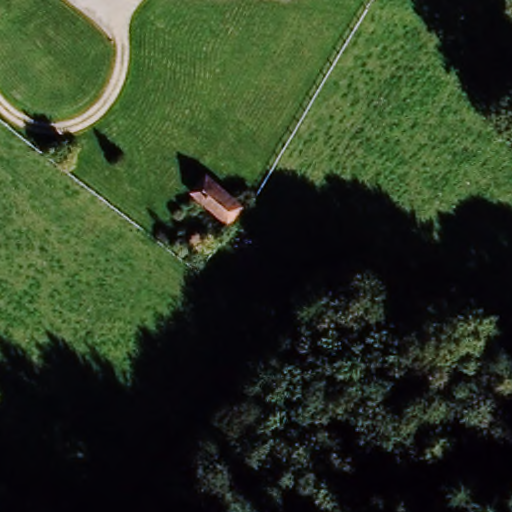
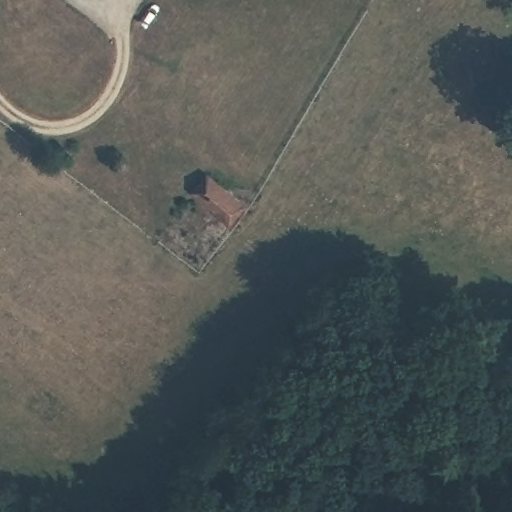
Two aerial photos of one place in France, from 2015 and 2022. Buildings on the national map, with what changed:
unchanged [(224,231),(192,193),(212,176),(242,214),(224,231)]

